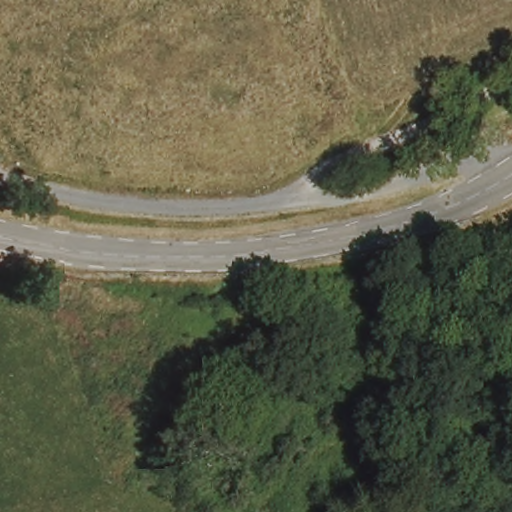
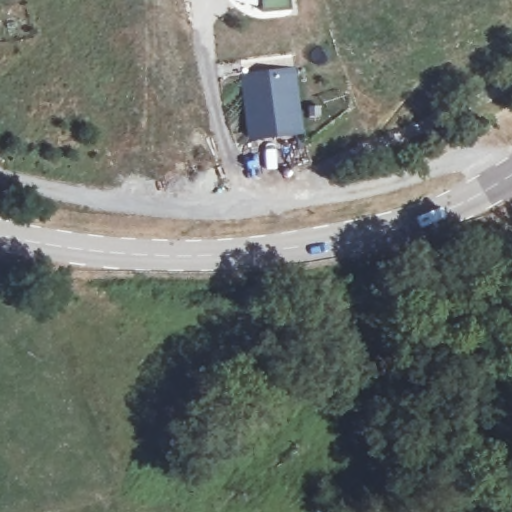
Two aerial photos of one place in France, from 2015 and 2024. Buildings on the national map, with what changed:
new [(264,11),(262,0),(291,0),(292,8),(264,11)]
new [(248,141),(240,75),(295,69),(304,132),(248,141)]

